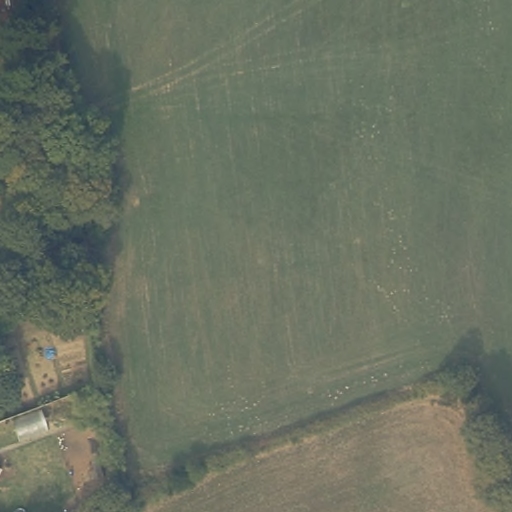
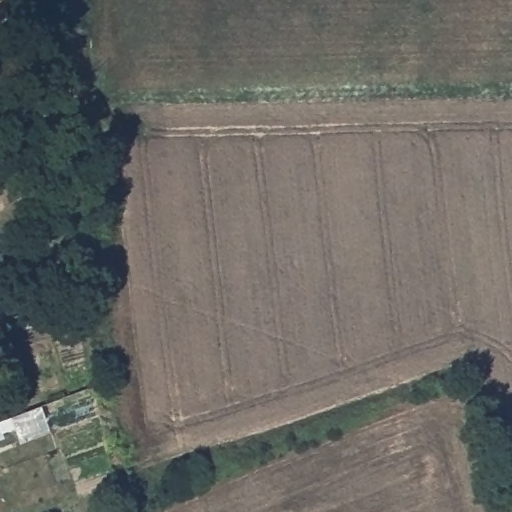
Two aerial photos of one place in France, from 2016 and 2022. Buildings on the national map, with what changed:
unchanged [(0,19),(0,0),(7,0),(9,17),(0,19)]

